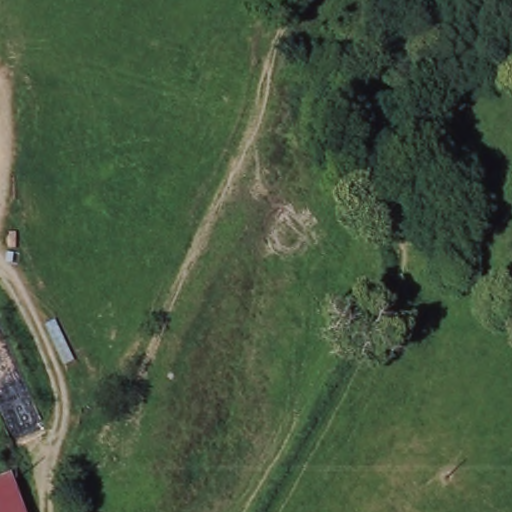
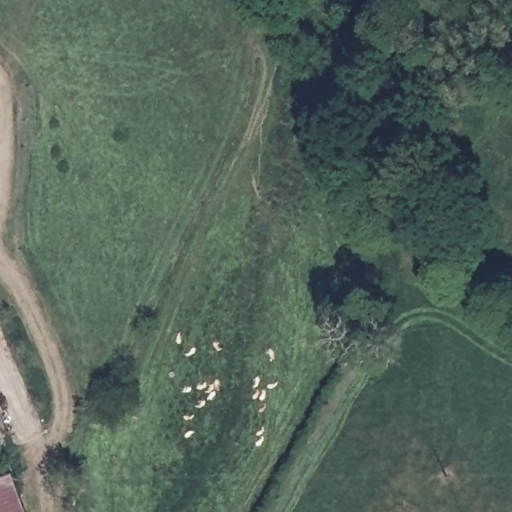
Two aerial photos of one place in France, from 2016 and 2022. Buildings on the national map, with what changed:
unchanged [(36,512),(0,512),(0,482),(19,474),(36,512)]

